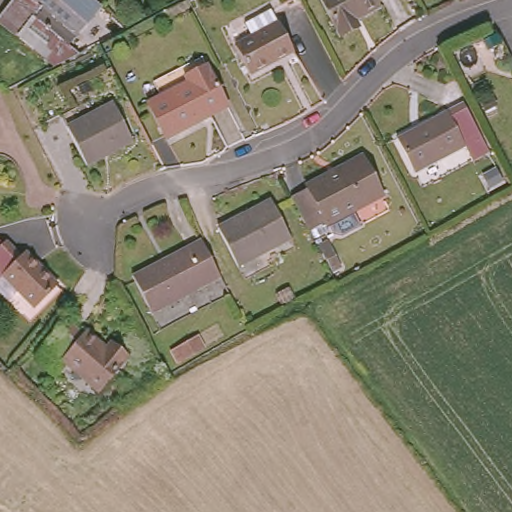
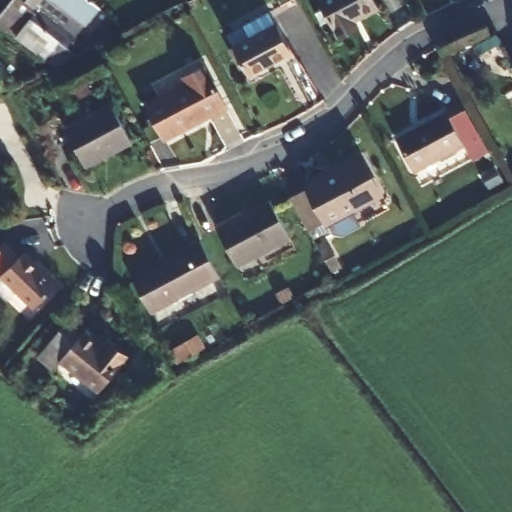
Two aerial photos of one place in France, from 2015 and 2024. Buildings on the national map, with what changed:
unchanged [(45,56),(0,22),(0,13),(7,5),(11,0),(89,0),(98,6),(85,21),(105,38),(55,64),(45,56)]
unchanged [(89,0),(105,0),(99,8),(98,6),(89,0)]
unchanged [(354,19),(356,24),(337,34),(319,0),(372,0),(376,7),(354,19)]
unchanged [(257,42),(250,29),(276,16),(294,53),(281,59),(283,64),(253,79),(238,51),(257,42)]
unchanged [(189,81),(185,74),(204,64),(225,108),(164,139),(146,104),(189,81)]
unchanged [(111,99),(131,139),(85,163),(65,124),(111,99)]
unchanged [(456,100),(481,149),(466,157),(458,142),(408,169),(391,135),(456,100)]
unchanged [(290,193),(307,184),(306,180),(360,154),(379,191),(324,219),(328,228),(312,235),(290,193)]
unchanged [(268,199),(288,238),(235,265),(215,227),(268,199)]
unchanged [(150,313),(130,275),(146,267),(147,269),(199,242),(217,276),(150,313)]
unchanged [(4,244),(19,259),(21,257),(33,269),(34,268),(55,289),(34,309),(1,277),(0,278),(0,247),(4,244)]
unchanged [(66,324),(81,336),(85,332),(105,349),(107,346),(123,359),(96,391),(60,361),(51,371),(37,359),(66,324)]
unchanged [(197,337),(202,347),(176,361),(170,350),(197,337)]

